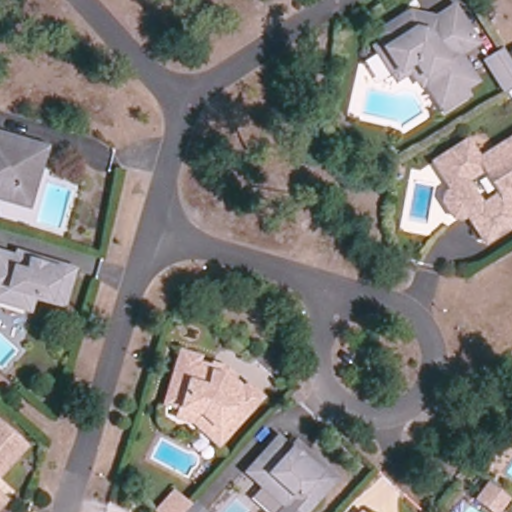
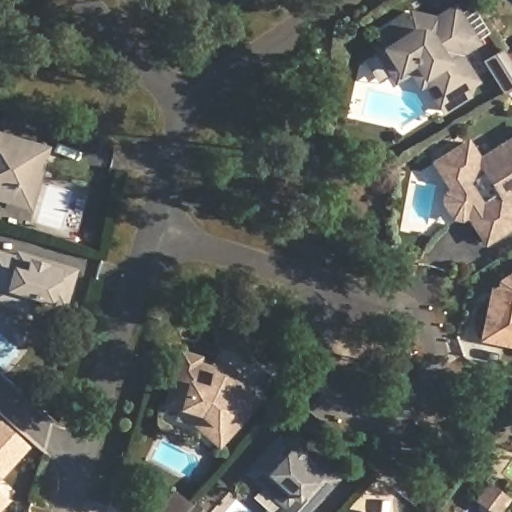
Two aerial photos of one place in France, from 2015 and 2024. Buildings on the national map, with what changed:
unchanged [(383,41),(378,33),(375,29),(379,27),(409,7),(413,14),(416,9),(429,18),(426,23),(451,6),(473,41),(455,53),(473,79),(461,87),(466,94),(442,110),(415,68),(412,67),(394,79),(373,48),(383,41)]
unchanged [(502,49),(512,64),(512,87),(506,91),(486,59),(502,49)]
unchanged [(512,213),(512,223),(485,241),(472,222),(476,219),(471,211),(460,218),(453,217),(443,201),(445,195),(453,189),(447,181),(446,182),(433,162),(464,142),(465,141),(477,160),(496,148),(512,137),(512,194),(503,199),(512,213)]
unchanged [(0,200),(0,138),(11,141),(14,146),(21,148),(25,145),(45,151),(38,174),(28,208),(0,200)]
unchanged [(11,260),(12,256),(29,261),(38,263),(69,273),(59,309),(29,300),(25,314),(0,307),(0,257),(11,260)]
new [(489,286),(497,288),(495,281),(512,270),(512,348),(478,340),(489,286)]
unchanged [(208,374),(215,376),(220,380),(225,384),(223,386),(236,398),(240,393),(253,406),(210,452),(199,441),(205,434),(194,420),(160,412),(175,361),(193,366),(191,372),(208,377),(208,374)]
unchanged [(0,474),(0,431),(21,450),(0,474)]
unchanged [(292,449),(298,442),(311,454),(336,478),(305,512),(282,512),(287,506),(261,482),(249,471),(257,462),(279,438),(292,449)]
unchanged [(489,511),(472,498),(482,485),(499,498),(489,511)]
unchanged [(200,512),(155,512),(153,510),(170,492),(173,494),(185,505),(188,501),(200,512)]
unchanged [(2,504),(0,506),(0,502),(2,504)]

